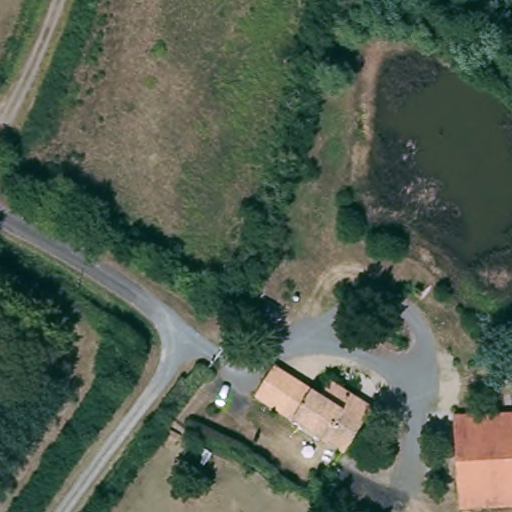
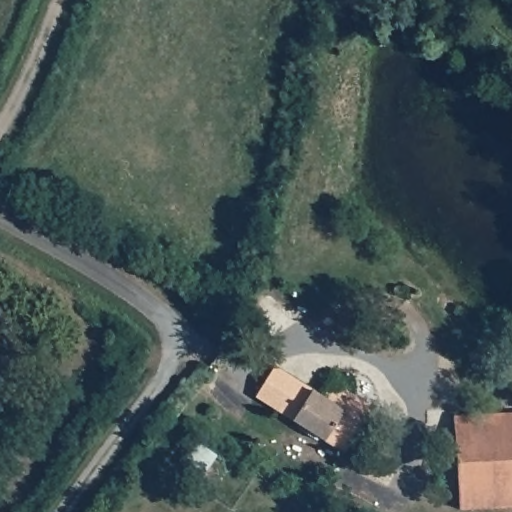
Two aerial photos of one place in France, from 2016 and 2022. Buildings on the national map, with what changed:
unchanged [(372,409),(341,452),(250,397),(268,367),(315,396),(327,382),(372,409)]
unchanged [(451,416),(457,416),(475,415),(491,415),(512,414),(512,508),(456,509),(451,416)]

